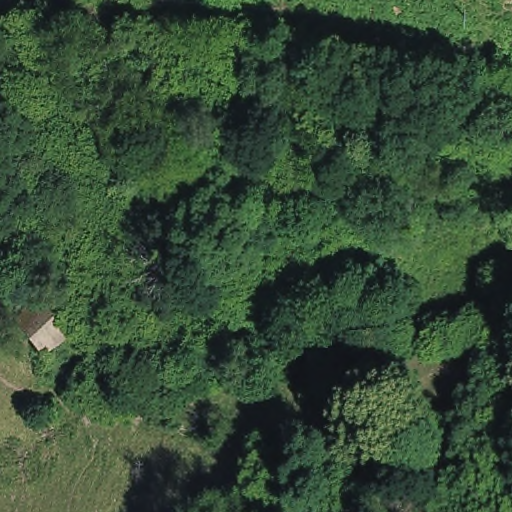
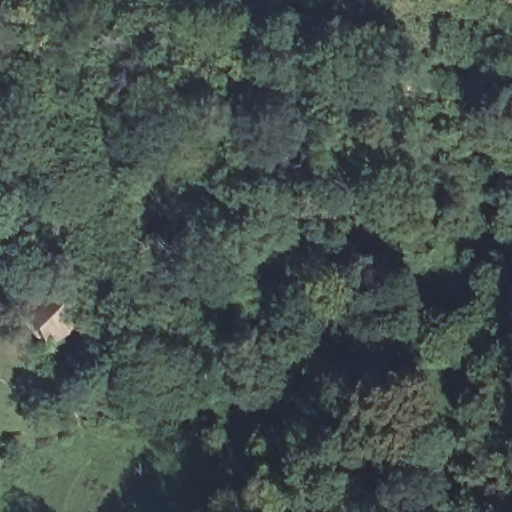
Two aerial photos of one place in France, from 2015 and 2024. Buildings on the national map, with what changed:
unchanged [(5,318),(40,289),(66,322),(32,351),(5,318)]

